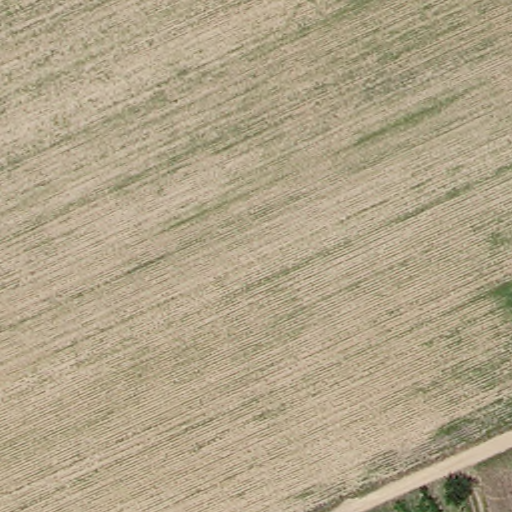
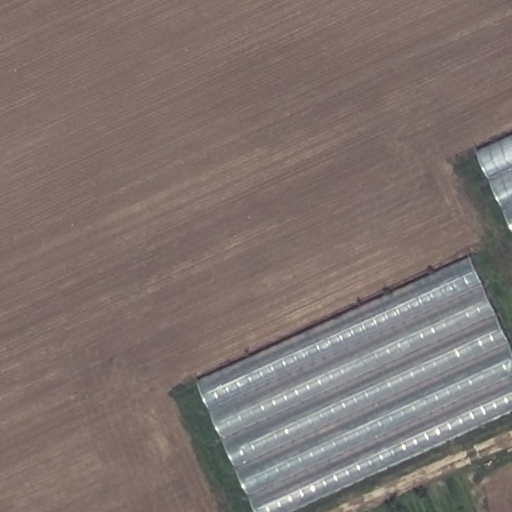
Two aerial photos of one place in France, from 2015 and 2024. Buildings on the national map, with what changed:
new [(512,139),(512,219),(481,153),(512,139)]
new [(512,351),(512,413),(287,512),(255,512),(198,380),(472,262),(512,351)]

